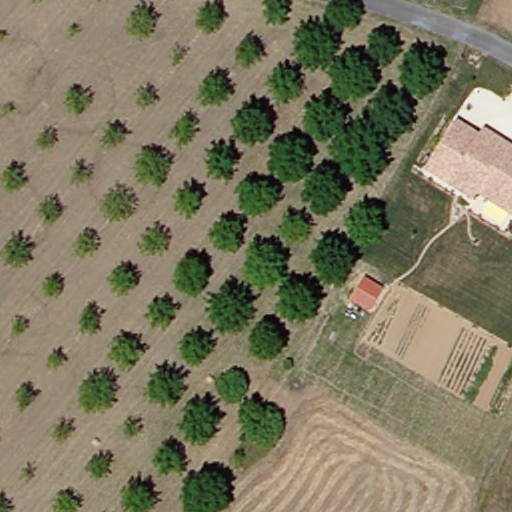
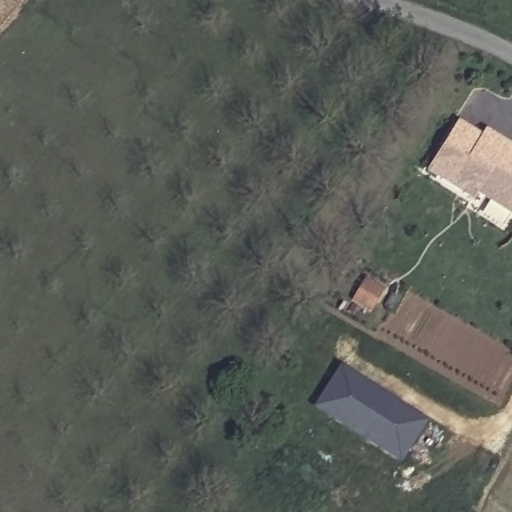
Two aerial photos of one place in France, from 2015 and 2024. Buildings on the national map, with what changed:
unchanged [(479,128),(512,149),(512,154),(510,157),(512,158),(512,216),(472,190),(467,197),(423,168),(453,121),(475,135),(479,128)]
new [(385,287),(370,313),(350,302),(366,276),(385,287)]
new [(400,462),(314,407),(340,365),(427,421),(400,462)]

